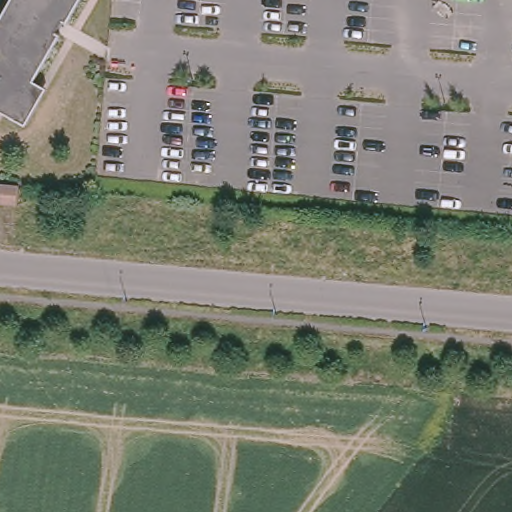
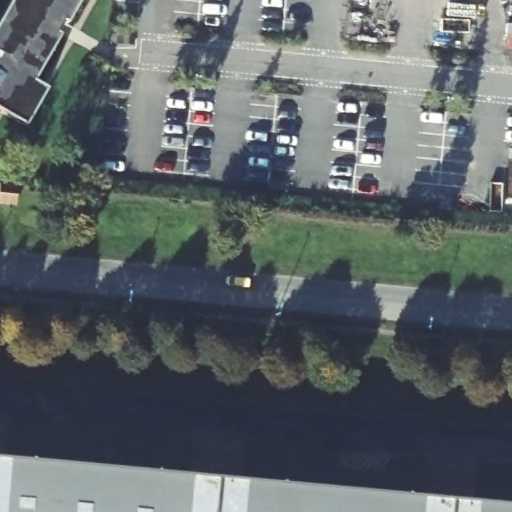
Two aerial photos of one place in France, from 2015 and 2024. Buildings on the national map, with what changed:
unchanged [(16,0),(87,0),(71,27),(67,24),(60,35),(64,38),(38,84),(51,91),(29,129),(0,112),(0,28),(16,0)]
unchanged [(16,187),(14,206),(0,204),(0,186),(16,187)]
new [(512,505),(512,512),(0,512),(0,458),(512,505)]

